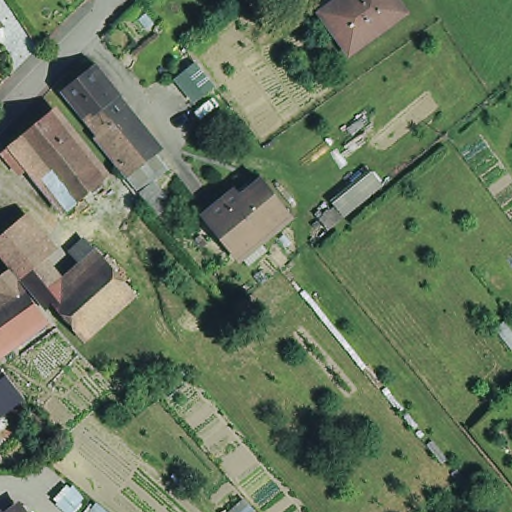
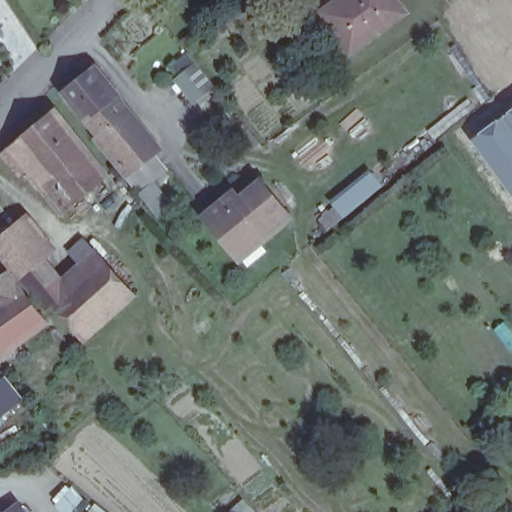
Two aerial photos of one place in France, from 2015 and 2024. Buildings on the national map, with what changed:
unchanged [(322,19),(314,8),(325,0),(393,0),(407,19),(350,60),(322,19)]
unchanged [(0,37),(0,25),(6,33),(0,37)]
new [(195,66),(212,87),(195,100),(179,80),(195,66)]
unchanged [(111,151),(75,105),(102,83),(140,129),(111,151)]
new [(512,107),(512,197),(469,139),(512,107)]
unchanged [(3,159),(10,152),(54,116),(86,156),(43,191),(27,172),(20,179),(3,159)]
unchanged [(140,129),(170,167),(137,193),(107,155),(111,151),(140,129)]
unchanged [(86,156),(107,183),(65,217),(43,191),(86,156)]
unchanged [(342,217),(331,204),(371,171),(385,187),(342,217)]
unchanged [(249,272),(241,262),(240,263),(207,223),(235,200),(240,205),(262,189),(290,222),(260,247),(268,256),(249,272)]
unchanged [(0,264),(0,248),(18,234),(46,269),(42,272),(21,289),(0,264)]
unchanged [(67,300),(102,268),(135,305),(85,348),(54,313),(67,300)]
unchanged [(67,300),(54,313),(47,320),(21,289),(42,272),(67,300)]
unchanged [(0,365),(0,313),(9,307),(0,297),(0,289),(9,282),(22,297),(32,309),(47,331),(0,365)]
unchanged [(0,428),(0,381),(22,410),(0,428)]

